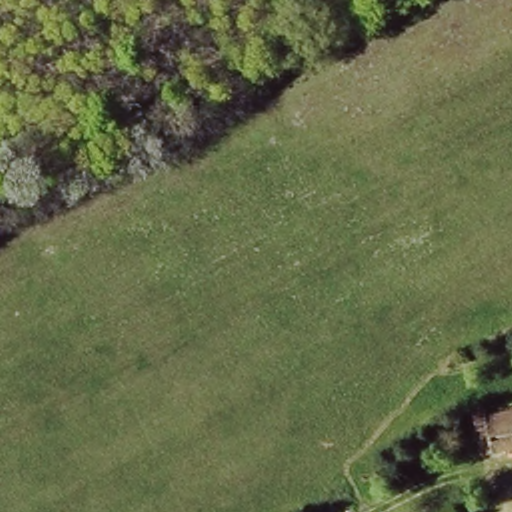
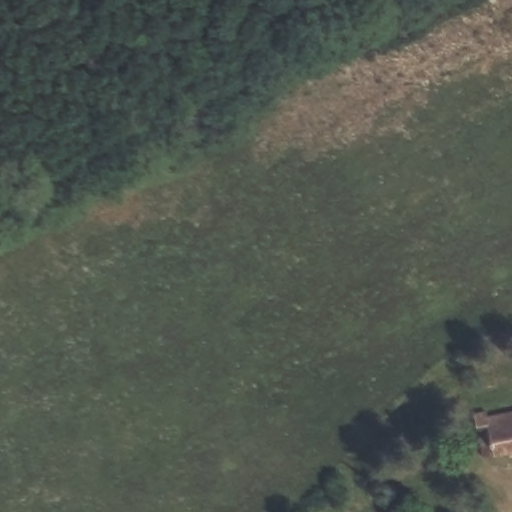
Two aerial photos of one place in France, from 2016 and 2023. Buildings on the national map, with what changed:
unchanged [(468,459),(466,460),(458,418),(512,406),(512,449),(468,459)]

